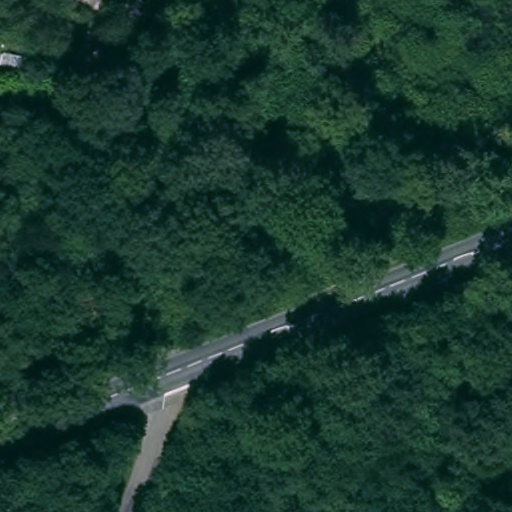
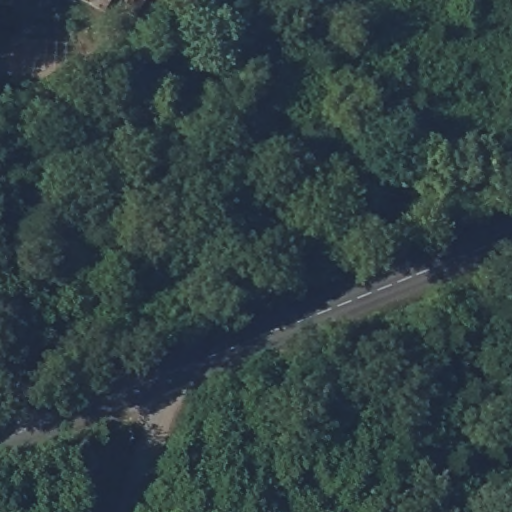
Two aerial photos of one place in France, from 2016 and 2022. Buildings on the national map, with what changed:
unchanged [(101,14),(76,0),(109,0),(110,1),(101,14)]

